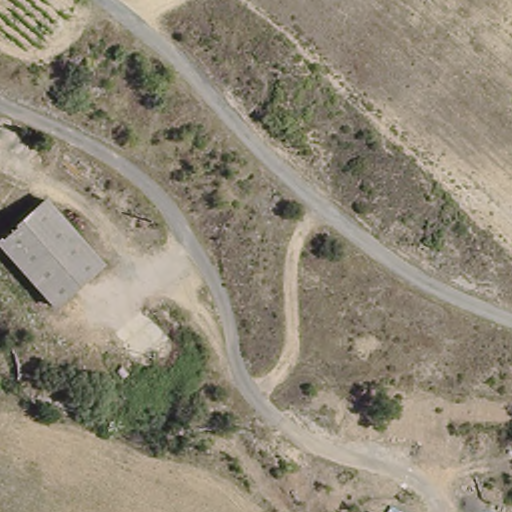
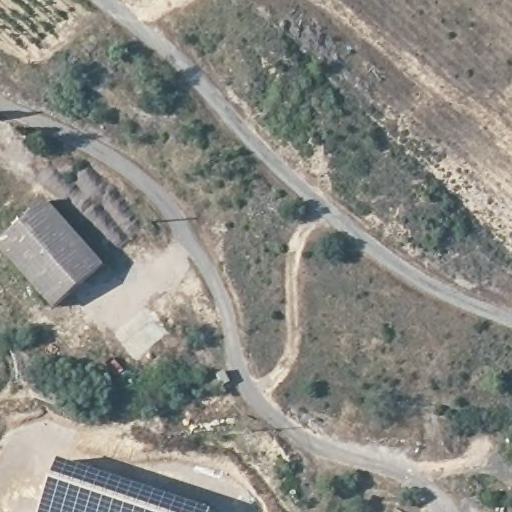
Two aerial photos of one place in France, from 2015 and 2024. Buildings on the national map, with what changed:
unchanged [(52,320),(0,261),(0,245),(45,204),(106,273),(52,320)]
new [(215,508),(213,512),(40,512),(59,458),(215,508)]

